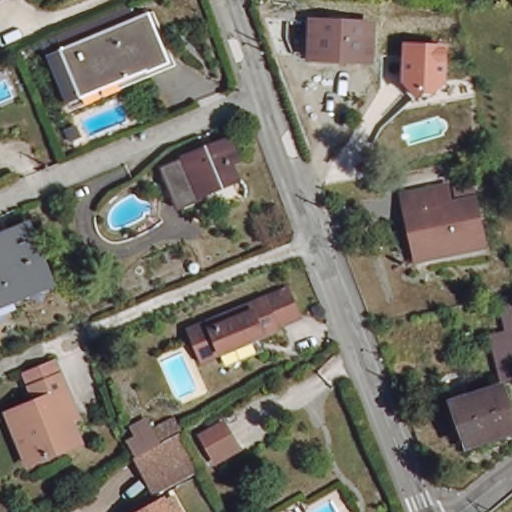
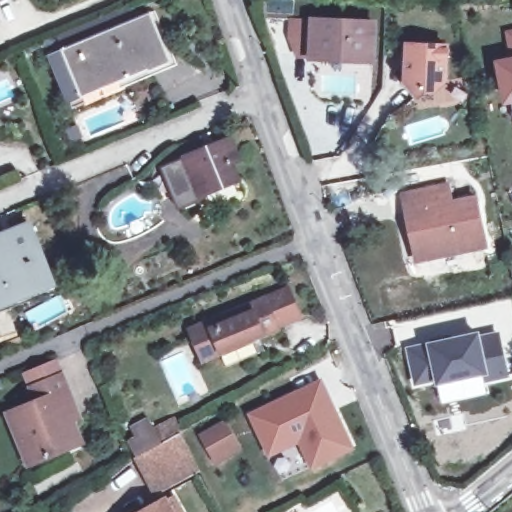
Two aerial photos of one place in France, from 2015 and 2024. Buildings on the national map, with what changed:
unchanged [(67,100),(47,52),(150,10),(170,60),(147,69),(147,67),(67,100)]
unchanged [(305,54),(307,18),(368,20),(367,56),(305,54)]
new [(494,60),(510,57),(504,31),(512,29),(512,104),(503,105),(494,60)]
new [(403,42),(448,44),(447,81),(435,93),(425,93),(418,99),(402,81),(403,42)]
unchanged [(71,143),(66,131),(75,127),(81,139),(71,143)]
unchanged [(182,210),(165,169),(235,140),(242,160),(235,162),(240,179),(203,195),(205,200),(182,210)]
unchanged [(401,214),(397,195),(442,185),(446,204),(452,202),(450,190),(468,186),(480,246),(422,258),(411,261),(401,214)]
unchanged [(13,234),(29,227),(50,280),(8,296),(10,300),(0,305),(0,234),(11,229),(13,234)]
unchanged [(225,363),(221,352),(200,361),(187,328),(288,287),(300,317),(278,326),(280,328),(257,337),(262,348),(225,363)]
new [(430,342),(479,332),(481,340),(500,332),(510,377),(488,382),(486,374),(437,386),(435,377),(415,385),(408,347),(430,342)]
demolished [(512,377),(500,380),(491,341),(512,336),(512,377)]
unchanged [(0,414),(0,412),(27,401),(21,388),(52,375),(65,406),(70,417),(63,420),(72,443),(53,450),(43,455),(31,460),(21,464),(13,445),(0,414)]
new [(321,378),(355,449),(310,470),(298,445),(266,458),(246,413),(321,378)]
demolished [(452,405),(498,390),(510,431),(465,446),(452,405)]
unchanged [(121,435),(167,417),(194,472),(146,494),(121,435)]
unchanged [(225,425),(237,449),(215,460),(202,436),(225,425)]
unchanged [(160,495),(161,497),(168,493),(178,511),(176,512),(129,512),(160,495)]

